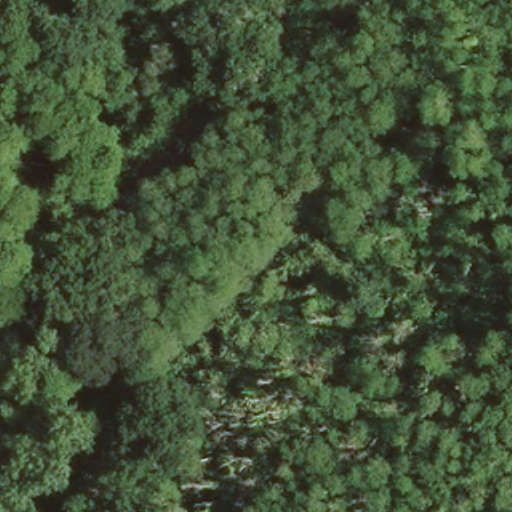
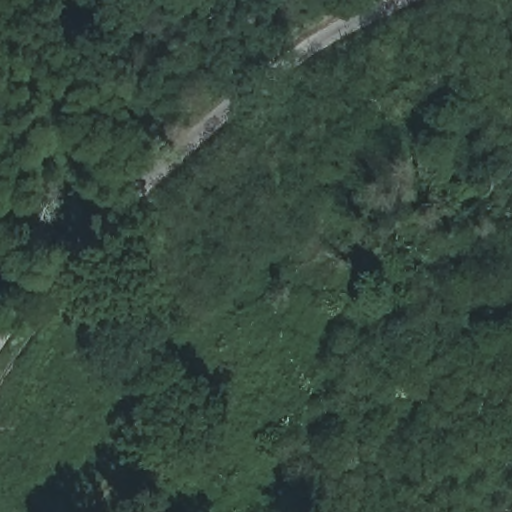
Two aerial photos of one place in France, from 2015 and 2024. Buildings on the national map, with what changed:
unchanged [(139,480),(133,486),(126,478),(132,472),(139,480)]

